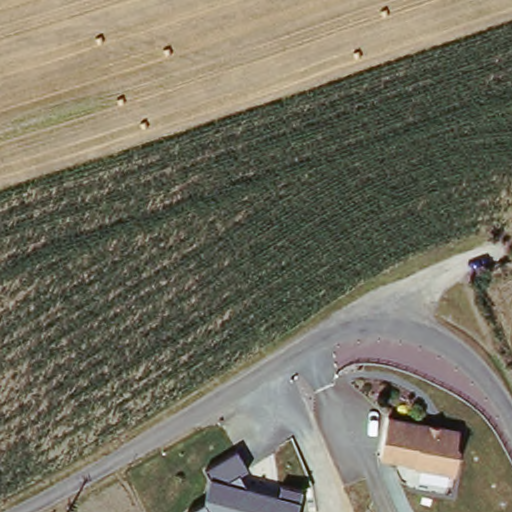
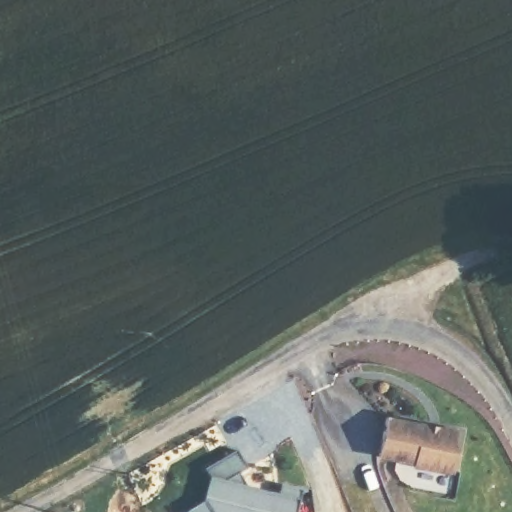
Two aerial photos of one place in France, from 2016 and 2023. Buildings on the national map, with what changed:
unchanged [(464,435),(457,453),(462,456),(455,478),(416,472),(417,467),(381,461),(391,421),(464,435)]
unchanged [(239,473),(245,485),(277,493),(280,483),(303,488),(297,512),(185,512),(205,500),(208,479),(201,470),(237,448),(249,468),(239,473)]

